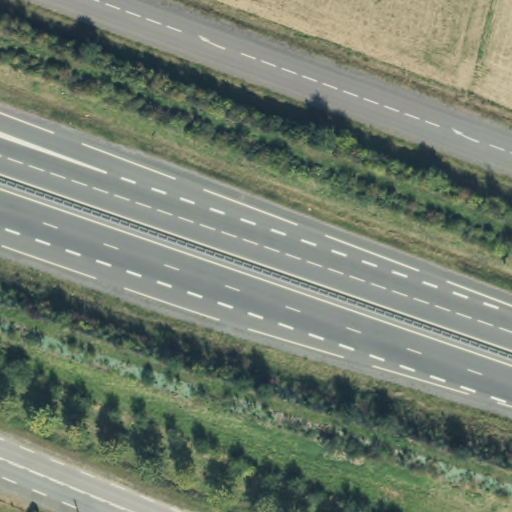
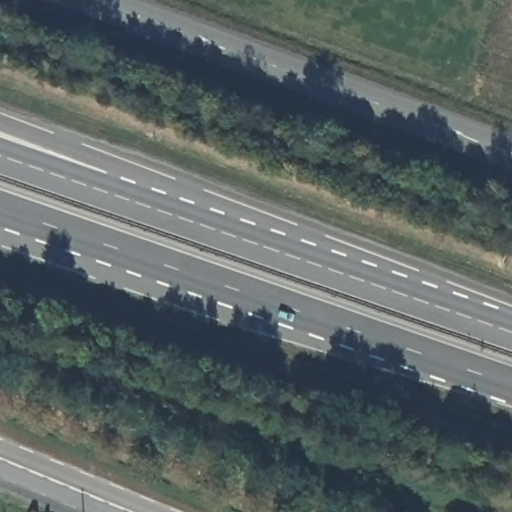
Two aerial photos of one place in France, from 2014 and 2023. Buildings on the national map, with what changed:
[]

